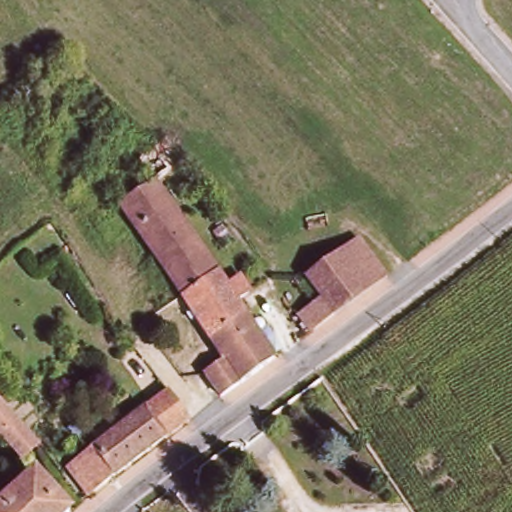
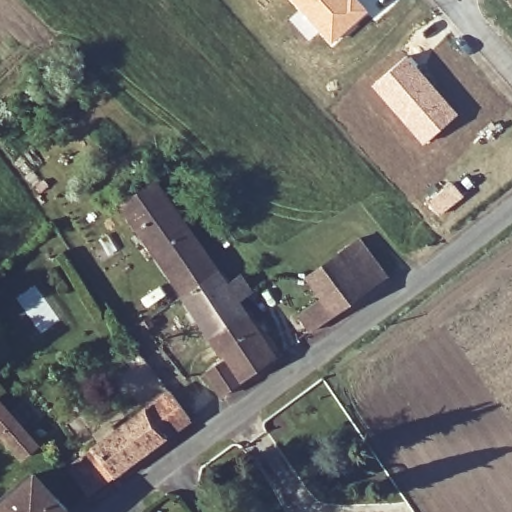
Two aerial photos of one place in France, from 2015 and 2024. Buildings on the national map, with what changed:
new [(370,11),(331,46),(289,0),(360,0),(370,11)]
new [(407,55),(459,114),(424,145),(372,85),(407,55)]
unchanged [(164,181),(147,161),(159,150),(176,170),(164,181)]
new [(450,181),(464,196),(440,216),(427,202),(450,181)]
unchanged [(190,296),(128,206),(161,183),(223,272),(190,296)]
unchanged [(365,239),(390,271),(392,276),(317,332),(308,319),(331,301),(315,279),(365,239)]
unchanged [(211,373),(233,359),(190,296),(223,272),(232,287),(247,278),(256,292),(243,302),(282,356),(227,396),(211,373)]
unchanged [(191,418),(92,494),(87,488),(71,467),(170,391),(191,418)]
unchanged [(38,445),(23,457),(2,433),(0,436),(0,403),(38,445)]
unchanged [(71,512),(0,512),(0,505),(35,474),(71,512)]

